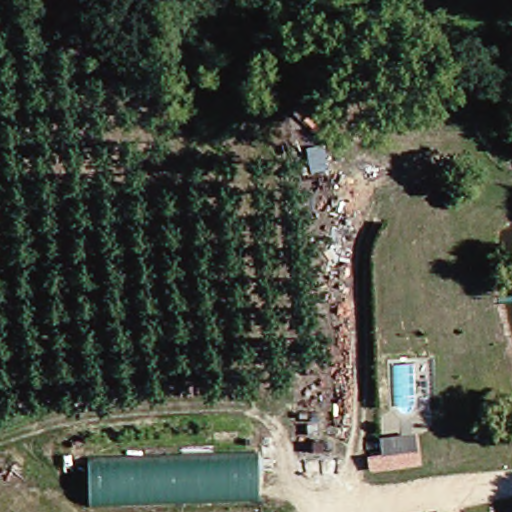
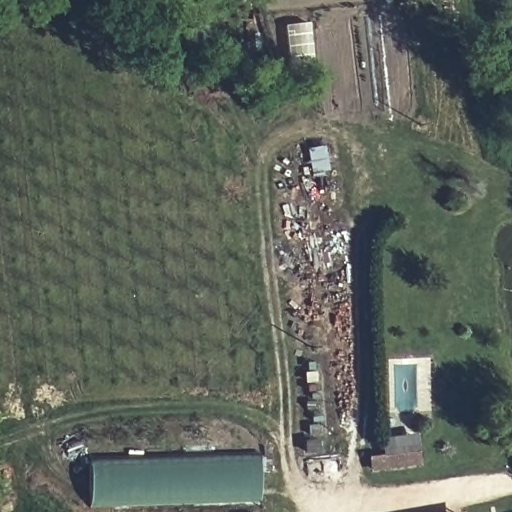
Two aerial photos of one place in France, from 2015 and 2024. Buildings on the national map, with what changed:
unchanged [(421,465),(370,472),(368,456),(383,453),(381,439),(416,434),(421,465)]
unchanged [(249,503),(80,508),(80,469),(250,467),(249,503)]

